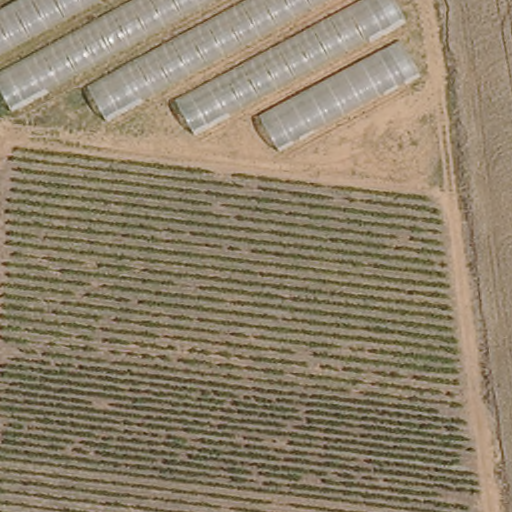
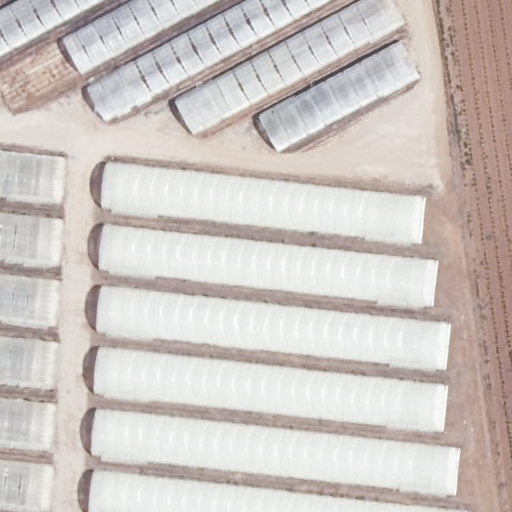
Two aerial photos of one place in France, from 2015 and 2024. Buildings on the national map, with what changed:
new [(415,79),(278,151),(252,100),(187,134),(167,88),(101,120),(75,80),(7,112),(0,99),(0,0),(404,0),(415,79)]
new [(66,160),(45,512),(0,512),(0,153),(66,160)]
new [(424,199),(413,260),(436,264),(429,324),(448,327),(436,450),(458,452),(453,512),(90,512),(107,166),(424,199)]

